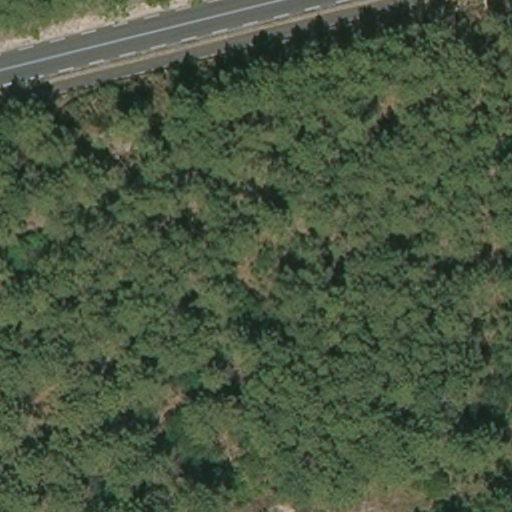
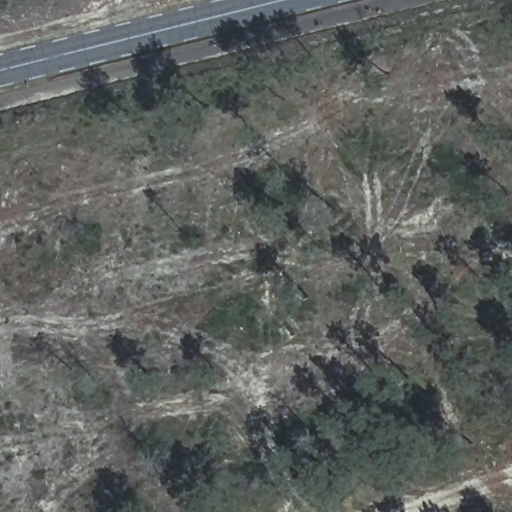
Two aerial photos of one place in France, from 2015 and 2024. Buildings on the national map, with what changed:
[]

